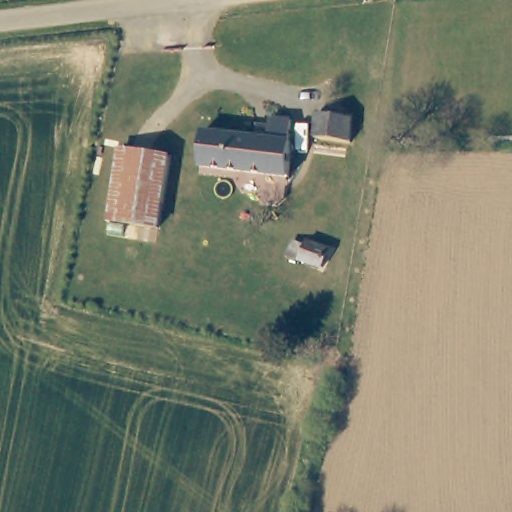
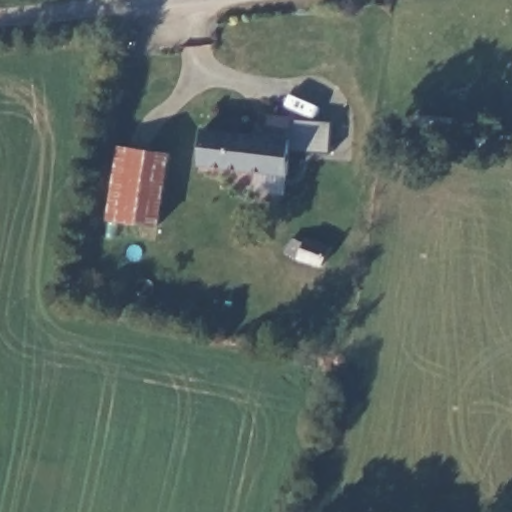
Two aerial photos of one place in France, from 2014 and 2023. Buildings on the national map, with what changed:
unchanged [(311,138),(313,113),(350,116),(348,140),(311,138)]
unchanged [(199,164),(203,130),(257,137),(258,125),(270,126),(271,118),(292,121),(289,141),(285,174),(199,164)]
unchanged [(158,226),(110,222),(117,145),(164,150),(158,226)]
unchanged [(337,243),(332,260),(295,249),(300,235),(311,238),(311,235),(337,243)]

